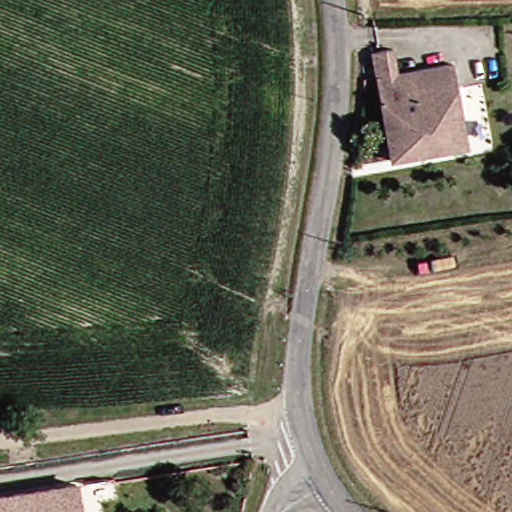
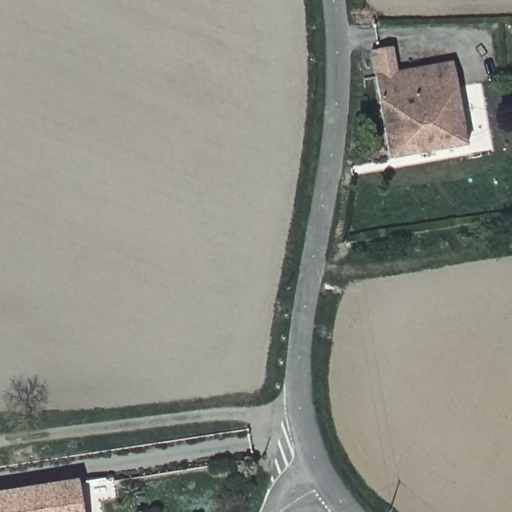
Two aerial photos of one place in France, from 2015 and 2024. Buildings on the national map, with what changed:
unchanged [(398,158),(375,33),(395,28),(402,55),(452,48),(470,146),(398,158)]
unchanged [(84,512),(0,512),(0,494),(79,484),(84,512)]

